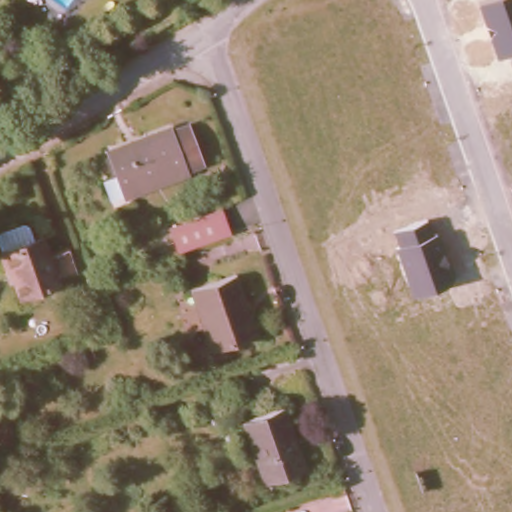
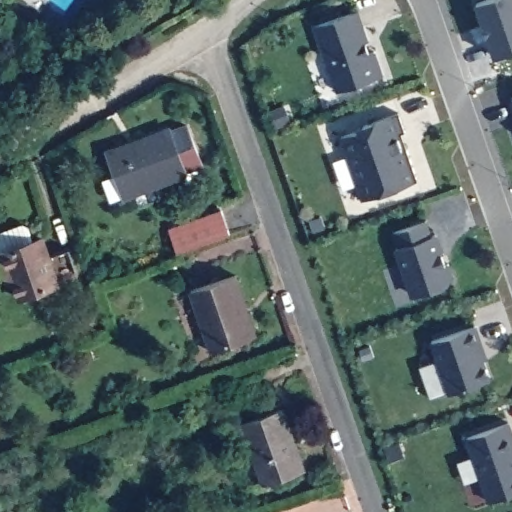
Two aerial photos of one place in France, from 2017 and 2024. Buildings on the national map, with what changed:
unchanged [(484,0),(512,0),(512,50),(495,55),(477,2),(484,0)]
new [(358,10),(382,75),(339,90),(315,25),(358,10)]
new [(401,112),(407,130),(404,131),(421,179),(366,197),(344,135),(367,127),(366,123),(401,112)]
unchanged [(170,133),(170,135),(188,129),(202,167),(185,173),(186,177),(126,198),(110,155),(170,133)]
unchanged [(169,228),(222,210),(230,233),(177,251),(169,228)]
unchanged [(395,247),(398,246),(394,231),(429,220),(433,235),(437,233),(452,280),(412,297),(395,247)]
unchanged [(0,255),(0,251),(1,251),(0,248),(0,230),(24,222),(30,225),(35,239),(42,237),(59,283),(20,296),(14,279),(9,280),(6,272),(0,255)]
unchanged [(246,331),(207,345),(187,284),(231,269),(242,301),(252,330),(246,331)]
new [(477,330),(495,382),(455,395),(437,343),(477,330)]
unchanged [(283,408),(294,440),(291,441),(300,468),(265,480),(245,422),(283,408)]
new [(509,423),(512,433),(512,493),(491,500),(468,436),(509,423)]

